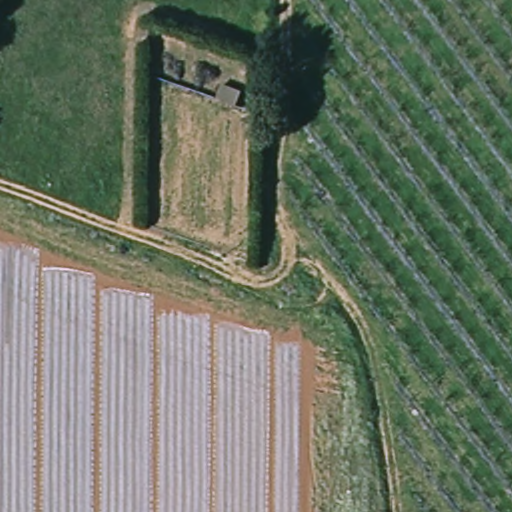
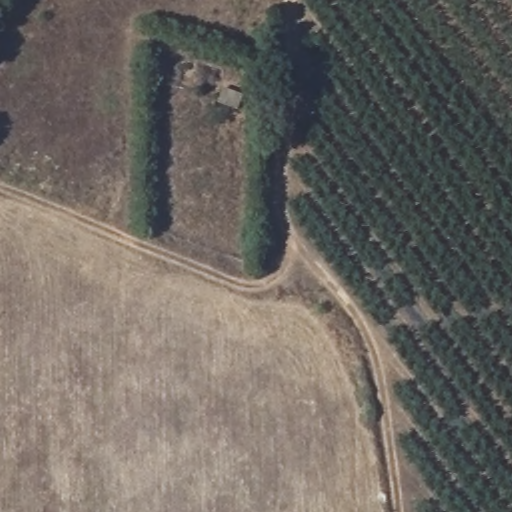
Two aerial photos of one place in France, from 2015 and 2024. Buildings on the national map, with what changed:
unchanged [(246,92),(233,112),(215,102),(225,84),(246,92)]

